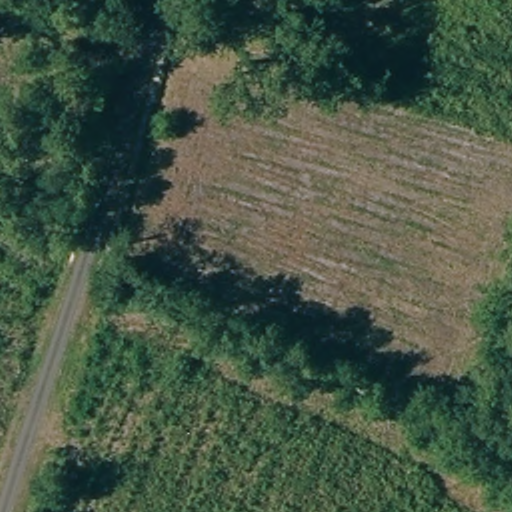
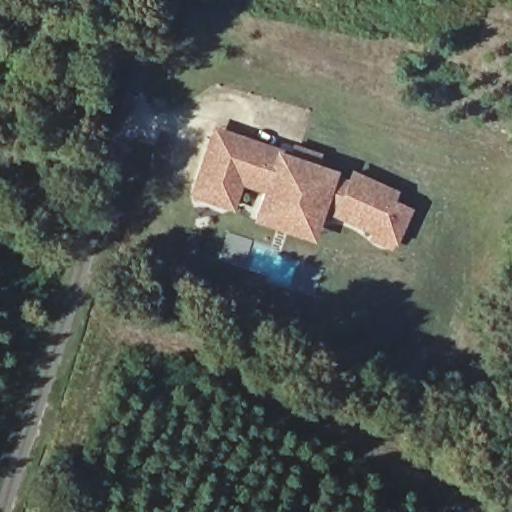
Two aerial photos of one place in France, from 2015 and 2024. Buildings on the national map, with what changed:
new [(276,148),(290,153),(293,143),(321,151),(320,163),(337,169),(335,175),(346,179),(350,168),(398,189),(394,200),(412,207),(395,241),(390,251),(367,241),(370,233),(333,216),(323,212),(311,242),(251,221),(259,193),(242,186),(234,211),(187,193),(211,124),(276,148)]

